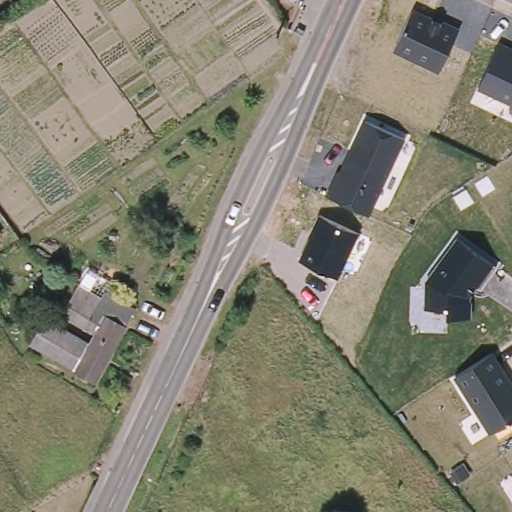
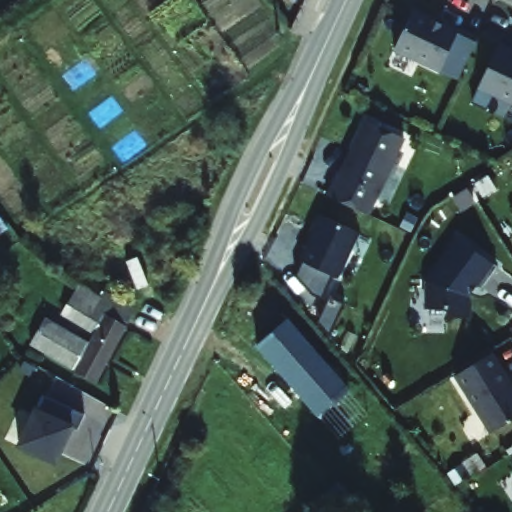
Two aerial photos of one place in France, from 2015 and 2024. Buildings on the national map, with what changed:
unchanged [(460,30),(438,74),(393,52),(412,9),(460,30)]
unchanged [(512,106),(477,90),(498,43),(512,49),(512,106)]
unchanged [(405,140),(370,216),(326,195),(337,170),(341,172),(364,121),(405,140)]
unchanged [(358,234),(338,279),(298,261),(317,215),(358,234)]
unchanged [(471,319),(447,319),(447,312),(425,309),(425,282),(455,238),(492,264),(496,267),(481,288),(477,286),(473,292),(470,297),(471,319)]
new [(321,299),(311,295),(296,277),(302,263),(332,276),(321,299)]
unchanged [(71,371),(71,370),(27,346),(41,321),(83,343),(88,332),(58,316),(63,308),(62,307),(73,287),(96,300),(100,293),(129,309),(90,382),(71,371)]
new [(287,318),(350,390),(318,418),(255,346),(287,318)]
unchanged [(512,420),(488,433),(453,376),(493,352),(512,383),(512,420)]
new [(18,446),(36,409),(73,427),(55,464),(18,446)]

